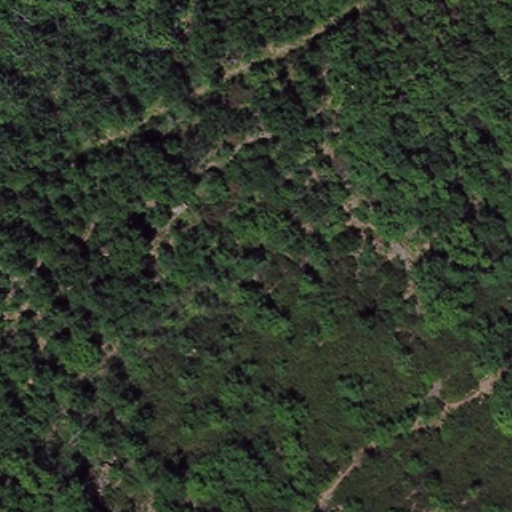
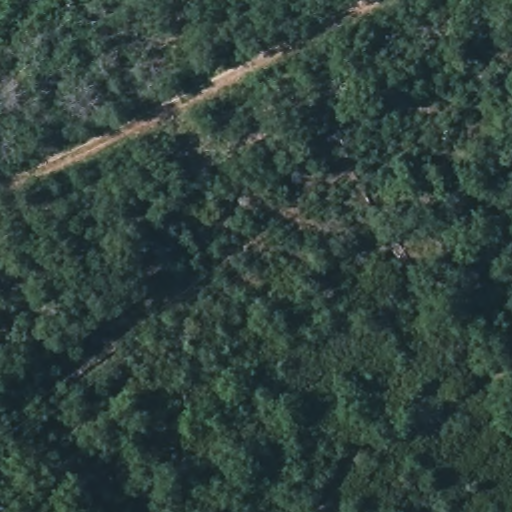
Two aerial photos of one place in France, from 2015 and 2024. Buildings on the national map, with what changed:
unchanged [(190,210),(164,218),(159,204),(183,191),(190,210)]

